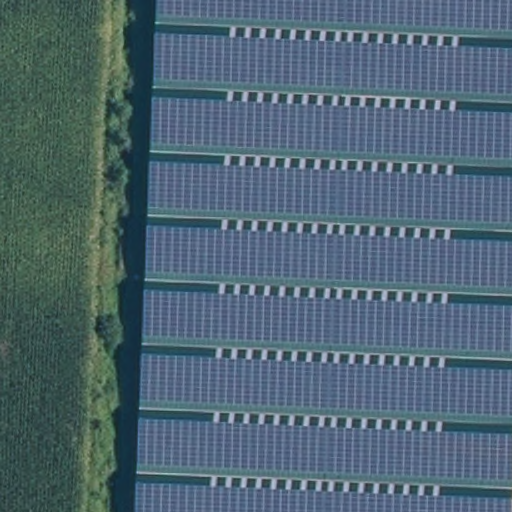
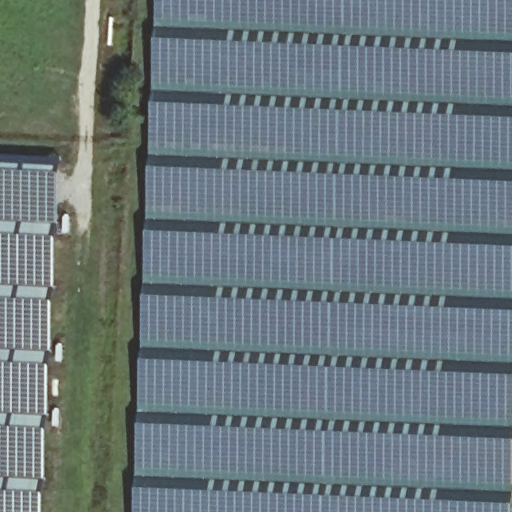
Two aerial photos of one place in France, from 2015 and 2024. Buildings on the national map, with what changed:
unchanged [(159,0),(512,0),(512,512),(138,512),(159,0)]
new [(64,157),(46,512),(0,512),(0,154),(64,157)]

